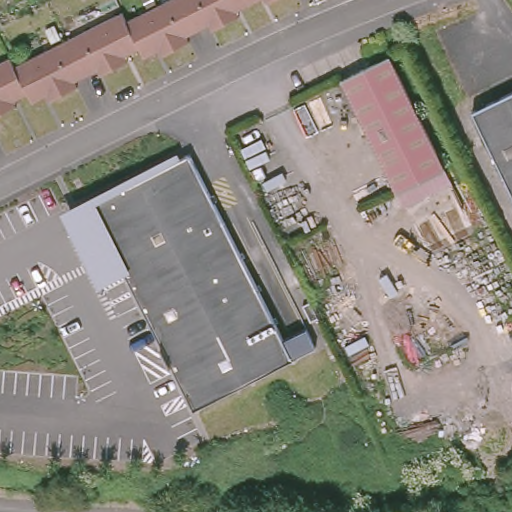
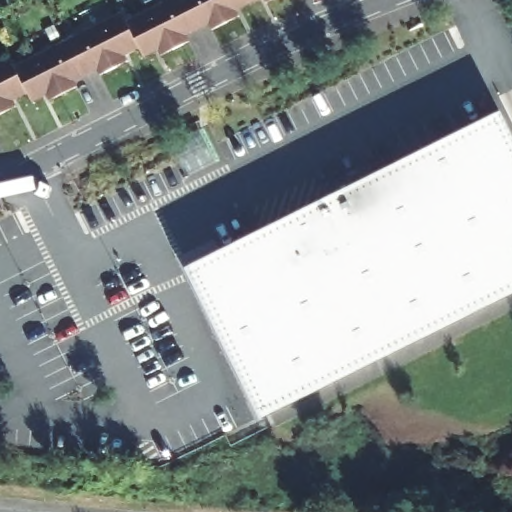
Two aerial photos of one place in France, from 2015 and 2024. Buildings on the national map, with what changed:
unchanged [(15,69),(18,74),(125,23),(127,29),(185,0),(288,0),(265,11),(264,7),(237,20),(239,25),(213,38),(211,34),(184,47),(186,52),(162,64),(160,59),(146,65),(143,59),(128,66),(130,71),(104,84),(102,79),(78,90),(81,95),(54,108),(52,103),(35,110),(32,104),(18,110),(21,114),(0,124),(0,75),(15,69)]
demolished [(399,205),(345,89),(393,66),(447,183),(399,205)]
demolished [(473,119),(512,98),(512,196),(473,119)]
new [(255,420),(181,272),(499,112),(512,138),(512,295),(255,420)]
demolished [(191,159),(282,342),(294,364),(197,412),(127,270),(95,207),(191,159)]

